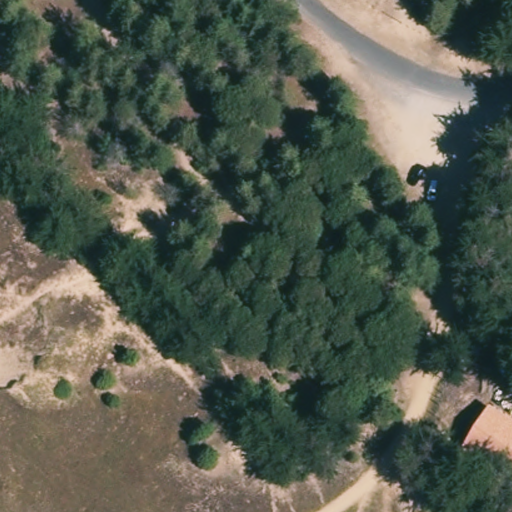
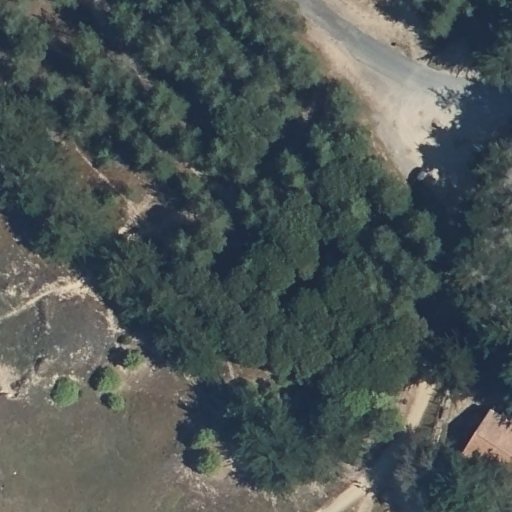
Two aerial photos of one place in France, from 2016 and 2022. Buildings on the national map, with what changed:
unchanged [(496,413),(512,423),(512,488),(467,458),(496,413)]

